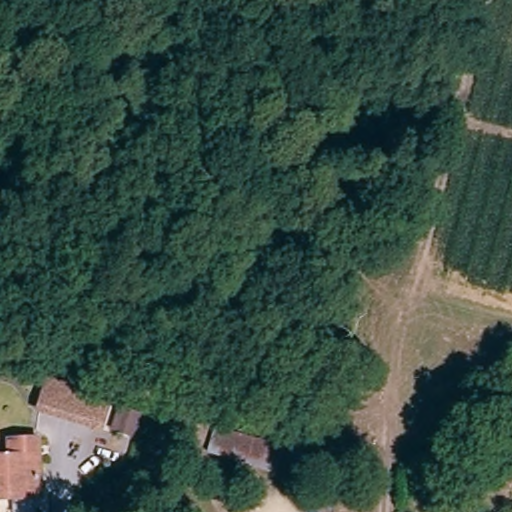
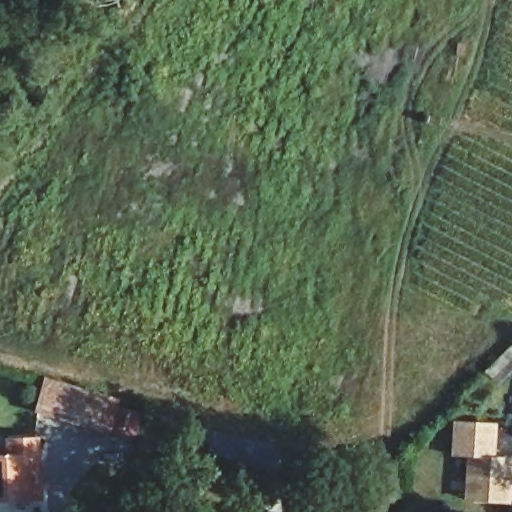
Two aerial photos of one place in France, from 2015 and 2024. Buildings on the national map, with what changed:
unchanged [(512,345),(512,370),(497,384),(485,371),(512,345)]
unchanged [(86,432),(27,415),(38,380),(96,397),(102,399),(92,433),(86,432)]
new [(465,501),(467,456),(451,456),(453,420),(497,423),(496,457),(512,458),(512,482),(511,504),(465,501)]
unchanged [(273,472),(210,454),(216,429),(237,435),(280,447),(273,472)]
unchanged [(0,510),(0,472),(15,471),(15,454),(41,453),(44,508),(0,510)]

